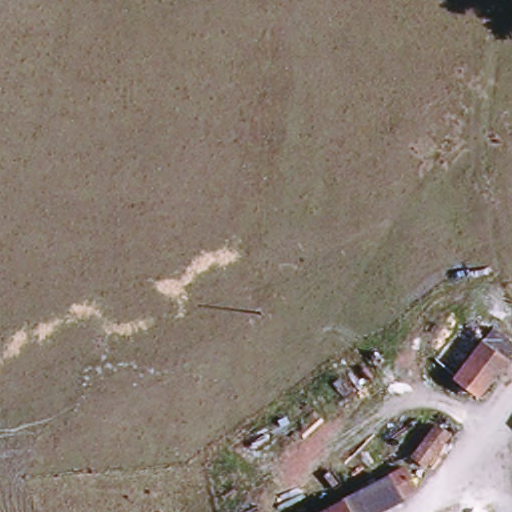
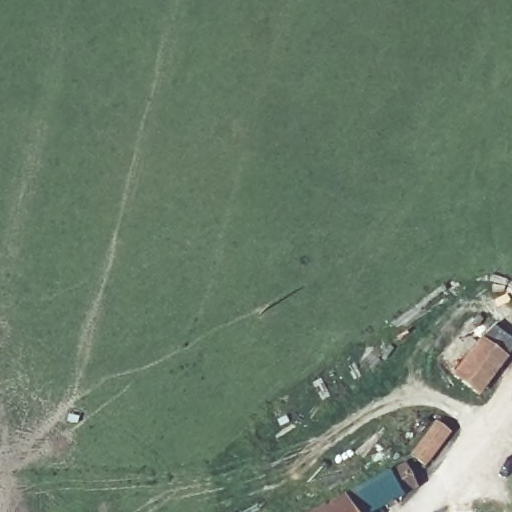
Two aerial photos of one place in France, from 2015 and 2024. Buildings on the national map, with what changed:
unchanged [(481,392),(457,375),(490,326),(512,342),(512,347),(481,392)]
unchanged [(409,452),(426,436),(438,447),(421,463),(409,452)]
unchanged [(403,467),(414,486),(363,512),(316,512),(403,467)]

